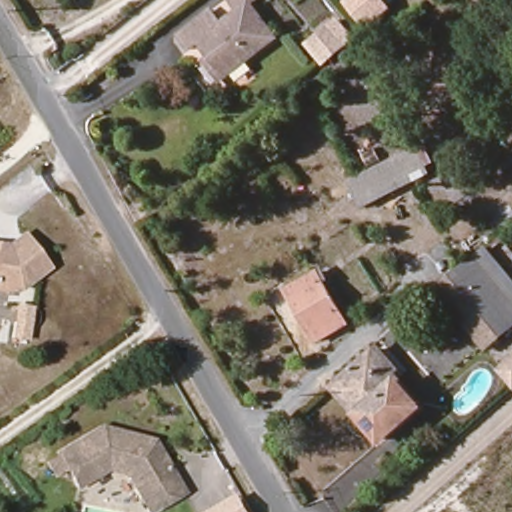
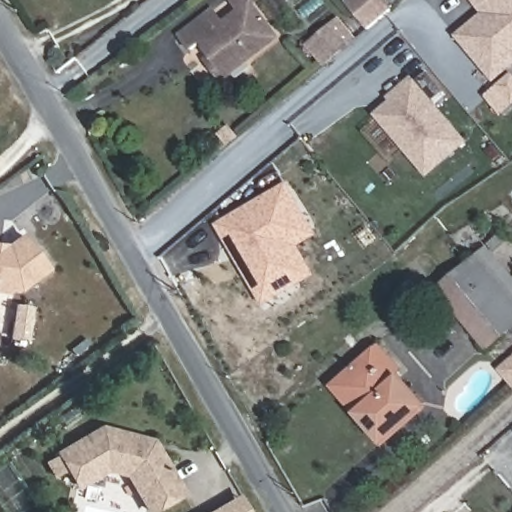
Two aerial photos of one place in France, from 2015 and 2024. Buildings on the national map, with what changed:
unchanged [(212,61),(216,58),(202,41),(194,46),(183,33),(212,11),(223,25),(244,11),(235,0),(258,0),(252,4),(280,38),(226,77),(212,61)]
unchanged [(351,7),(359,0),(383,0),(394,15),(373,32),(351,7)]
new [(495,83),(455,36),(482,14),(470,0),(512,0),(512,69),(495,83)]
unchanged [(325,67),(306,45),(339,16),(357,39),(325,67)]
new [(373,115),(412,75),(416,81),(426,72),(443,93),(433,101),(469,143),(427,179),(373,115)]
demolished [(435,169),(362,212),(347,184),(424,147),(435,169)]
new [(302,247),(318,276),(264,307),(217,225),(288,183),(320,236),(302,247)]
unchanged [(0,244),(9,245),(20,238),(44,271),(19,288),(11,287),(5,292),(0,291),(0,244)]
unchanged [(477,258),(489,247),(512,274),(512,299),(477,258)]
unchanged [(512,299),(512,327),(463,269),(477,258),(512,299)]
unchanged [(512,327),(492,345),(442,286),(463,269),(512,327)]
demolished [(315,341),(303,320),(286,289),(315,273),(330,298),(346,324),(315,341)]
unchanged [(442,286),(492,345),(482,354),(431,295),(442,286)]
unchanged [(382,442),(358,416),(365,410),(341,383),(380,350),(390,363),(398,373),(392,378),(419,410),(382,442)]
unchanged [(498,370),(512,357),(512,387),(498,370)]
unchanged [(154,441),(182,493),(147,511),(128,475),(106,468),(77,484),(59,450),(102,427),(154,441)]
unchanged [(240,493),(251,512),(206,512),(240,493)]

